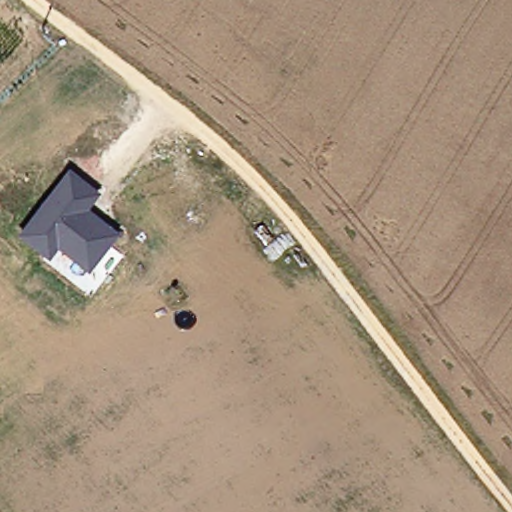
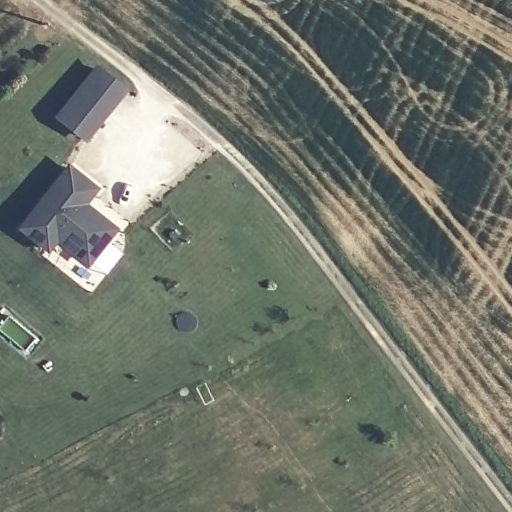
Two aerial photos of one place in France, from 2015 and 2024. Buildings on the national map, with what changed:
new [(94,67),(126,92),(86,144),(53,117),(94,67)]
unchanged [(16,230),(67,165),(100,189),(88,205),(117,229),(86,268),(56,244),(48,255),(16,230)]

